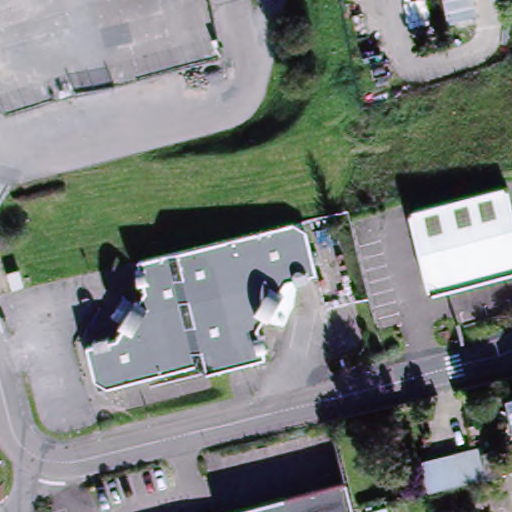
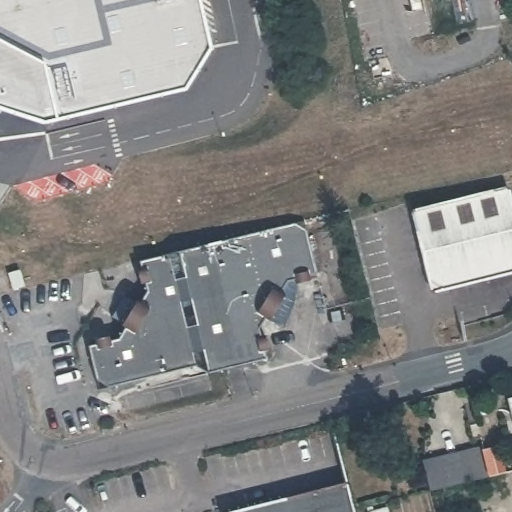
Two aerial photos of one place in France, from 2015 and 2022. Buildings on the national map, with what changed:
new [(207,48),(181,88),(52,118),(40,122),(0,109),(0,0),(196,0),(207,48)]
unchanged [(510,187),(512,195),(512,275),(446,293),(428,284),(410,213),(510,187)]
unchanged [(299,221),(312,277),(295,282),(292,305),(282,325),(264,321),(257,333),(263,359),(211,373),(198,368),(104,391),(93,345),(122,339),(153,289),(145,259),(299,221)]
unchanged [(21,293),(12,295),(7,279),(19,275),(24,292),(21,293)]
unchanged [(409,466),(487,447),(495,473),(420,492),(415,493),(409,466)]
unchanged [(352,510),(353,512),(234,512),(346,485),(352,510)]
unchanged [(384,512),(377,512),(383,511),(384,512)]

